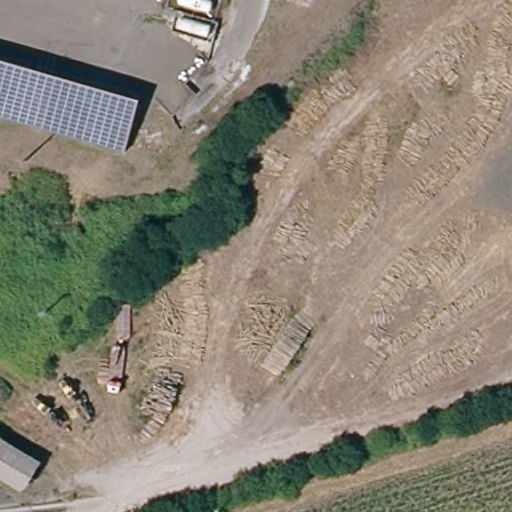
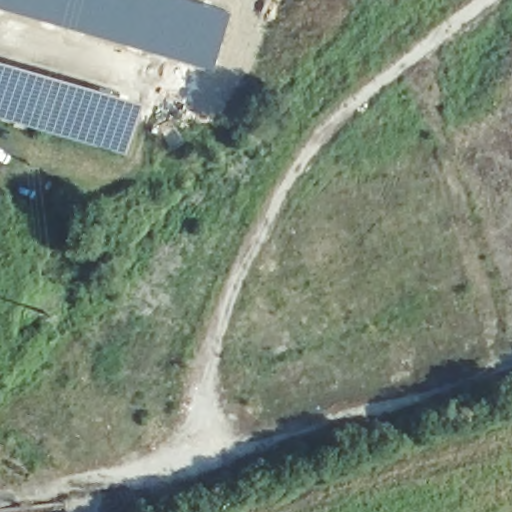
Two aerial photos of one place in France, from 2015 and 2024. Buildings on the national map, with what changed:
new [(212,70),(80,32),(0,8),(0,0),(194,0),(230,11),(212,70)]
unchanged [(126,151),(0,114),(0,65),(139,106),(126,151)]
unchanged [(17,491),(0,478),(0,439),(37,466),(17,491)]

